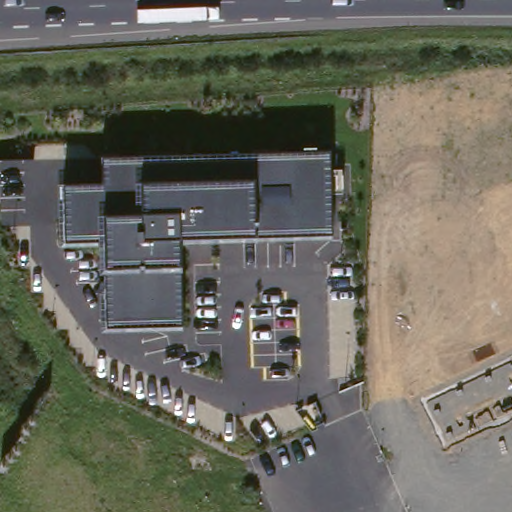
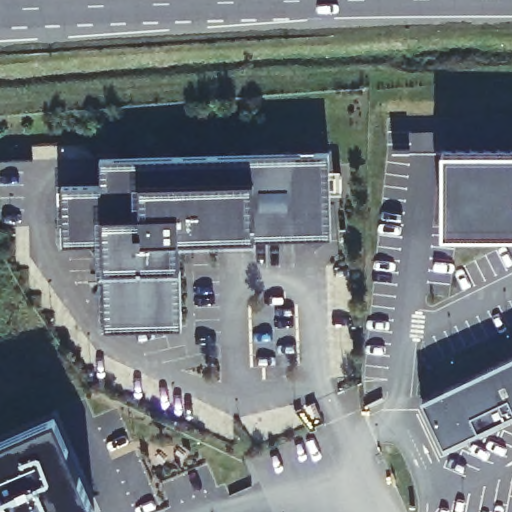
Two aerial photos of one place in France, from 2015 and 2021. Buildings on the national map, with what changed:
unchanged [(329,234),(177,240),(178,265),(179,326),(106,329),(104,272),(103,240),(62,242),(61,190),(104,189),(103,161),(328,154),(329,234)]
new [(512,164),(512,239),(447,238),(448,164),(512,164)]
new [(512,418),(438,455),(416,411),(512,362),(512,418)]
new [(68,444),(97,512),(0,512),(0,473),(68,444)]

